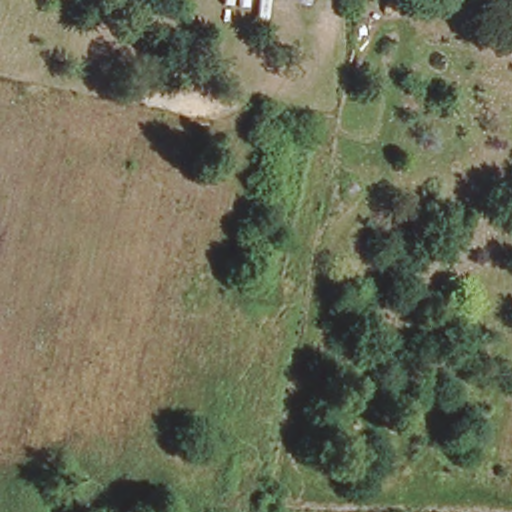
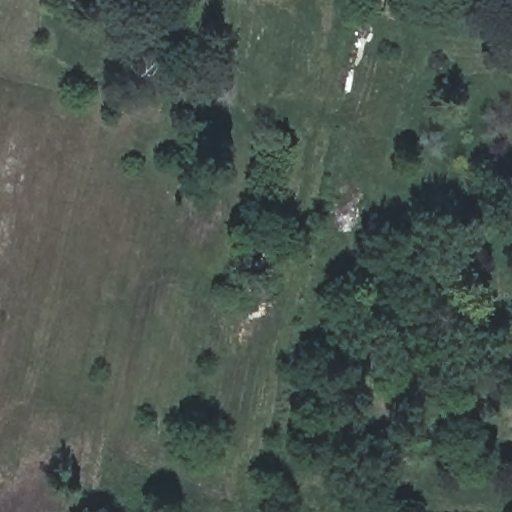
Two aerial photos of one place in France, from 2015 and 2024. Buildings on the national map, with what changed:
unchanged [(385,10),(386,0),(396,0),(395,11),(385,10)]

